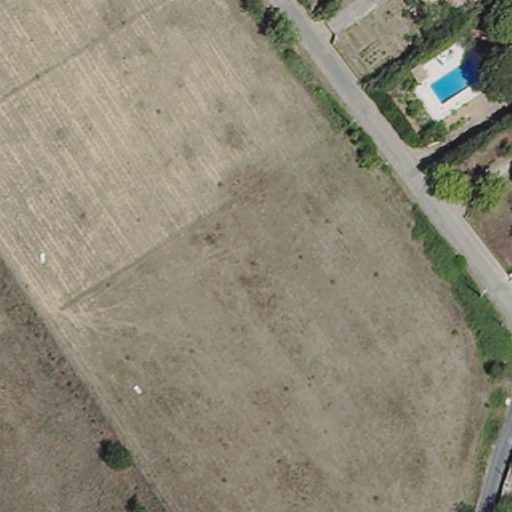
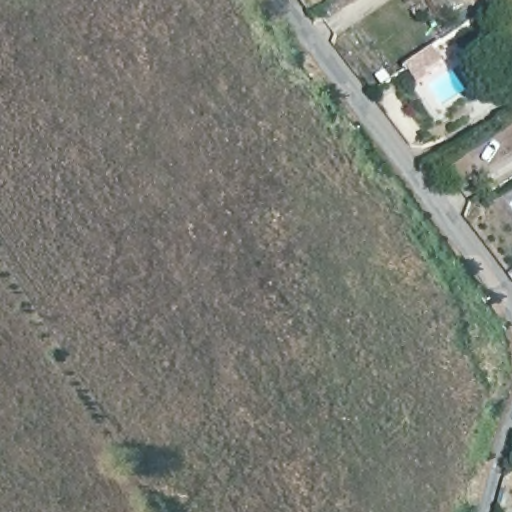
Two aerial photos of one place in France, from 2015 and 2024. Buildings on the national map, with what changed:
unchanged [(430,77),(420,84),(412,73),(422,66),(430,77)]

